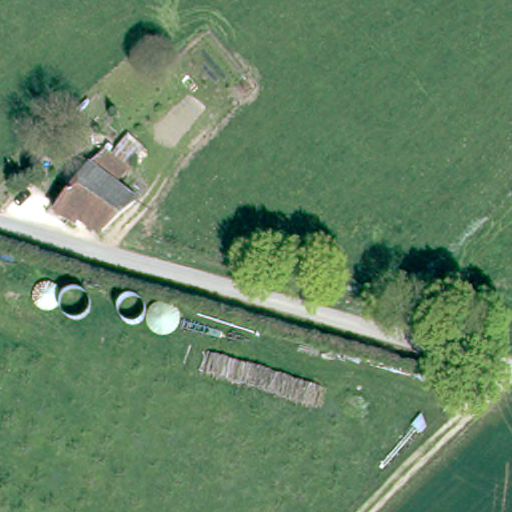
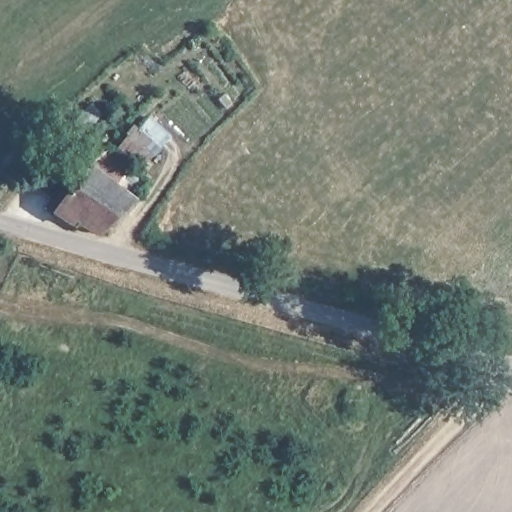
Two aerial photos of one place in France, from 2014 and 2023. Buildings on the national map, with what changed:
unchanged [(104,231),(78,222),(75,229),(54,212),(87,165),(99,147),(125,165),(113,182),(130,192),(104,231)]

